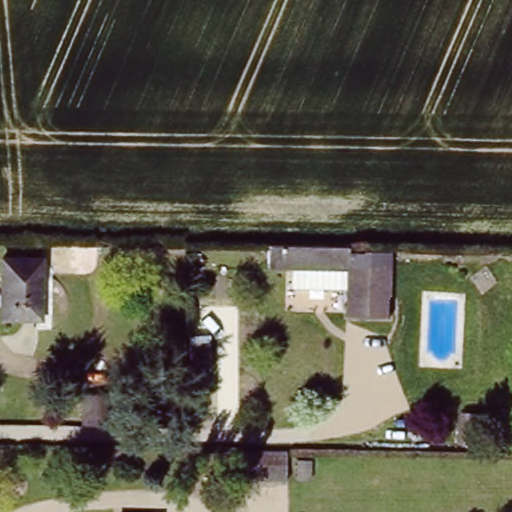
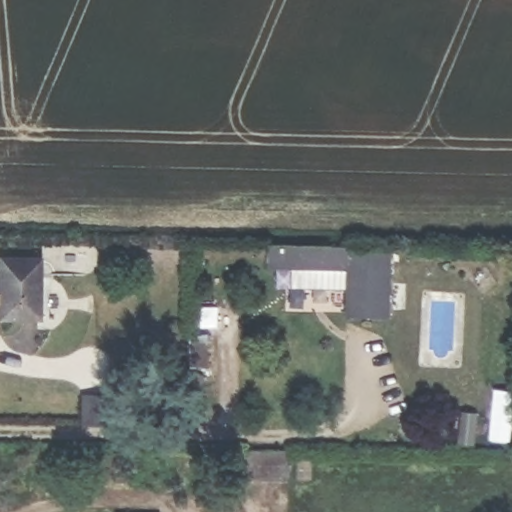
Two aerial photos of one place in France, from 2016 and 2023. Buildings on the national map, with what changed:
unchanged [(350,245),(350,255),(388,256),(387,320),(343,317),(343,292),(290,290),(290,272),(266,270),(266,245),(350,245)]
unchanged [(0,319),(0,256),(39,256),(39,319),(0,319)]
unchanged [(247,448),(247,452),(286,454),(285,482),(246,480),(245,465),(228,464),(228,448),(247,448)]

